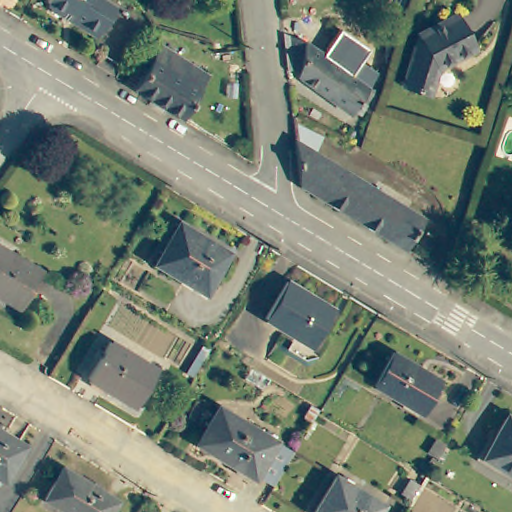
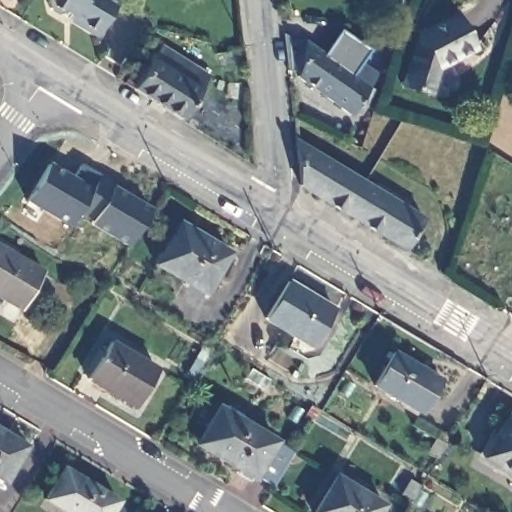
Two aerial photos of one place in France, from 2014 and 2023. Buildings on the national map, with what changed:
unchanged [(9,1),(6,0),(10,0),(9,1)]
unchanged [(60,14),(51,8),(49,1),(49,0),(104,0),(116,7),(97,37),(70,20),(72,16),(67,12),(60,14)]
unchanged [(387,90),(403,38),(440,18),(459,53),(423,73),(415,100),(387,90)]
unchanged [(368,56),(360,68),(372,76),(362,89),(366,92),(357,105),(362,109),(356,120),(350,116),(347,120),(293,82),(295,77),(283,76),(280,38),(302,47),(327,64),(345,39),(368,56)]
unchanged [(210,76),(182,120),(135,90),(126,84),(137,64),(147,70),(162,46),(210,76)]
unchanged [(395,245),(291,181),(286,136),(288,138),(287,121),(312,133),(306,148),(415,214),(395,245)]
new [(127,246),(88,224),(91,220),(77,211),(68,226),(24,201),(46,160),(75,176),(82,164),(112,184),(151,208),(127,246)]
unchanged [(180,285),(151,268),(176,228),(225,257),(202,294),(182,282),(180,285)]
unchanged [(0,305),(0,249),(40,272),(15,313),(0,305)]
unchanged [(282,281),(329,310),(306,348),(259,319),(282,281)]
unchanged [(131,411),(85,383),(107,346),(154,374),(131,411)]
unchanged [(388,357),(435,385),(415,418),(368,390),(388,357)]
unchanged [(251,478),(193,444),(216,407),(272,442),(251,478)]
unchanged [(508,416),(512,418),(512,475),(483,457),(508,416)]
unchanged [(17,450),(0,478),(0,440),(17,450)]
unchanged [(109,505),(105,512),(50,512),(36,503),(54,472),(109,505)]
unchanged [(420,485),(412,499),(402,494),(411,480),(420,485)]
unchanged [(314,512),(332,481),(380,510),(379,512),(314,512)]

